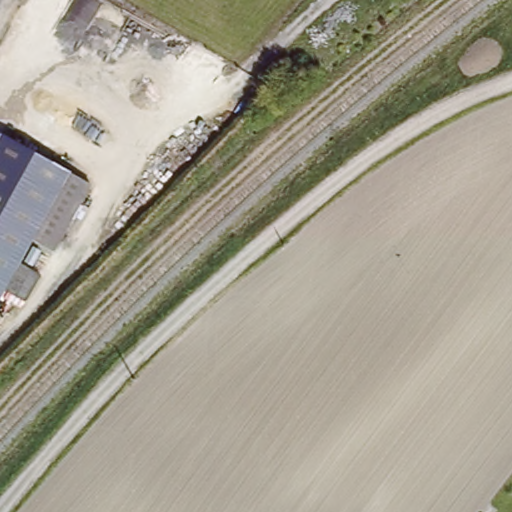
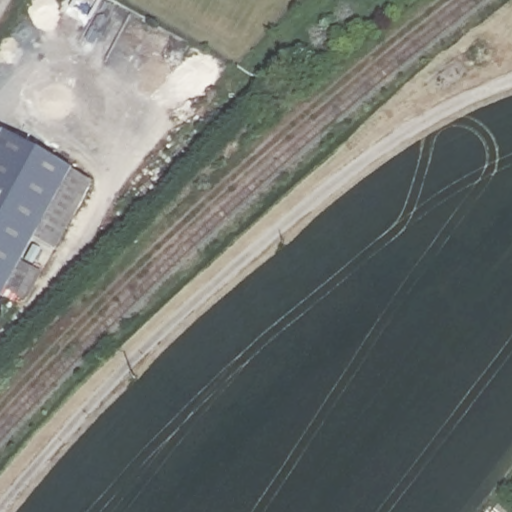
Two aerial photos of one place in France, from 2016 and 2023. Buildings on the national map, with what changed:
unchanged [(31,301),(10,288),(0,308),(0,149),(8,133),(75,170),(38,238),(25,261),(46,274),(31,301)]
unchanged [(96,183),(60,250),(38,238),(75,170),(96,183)]

